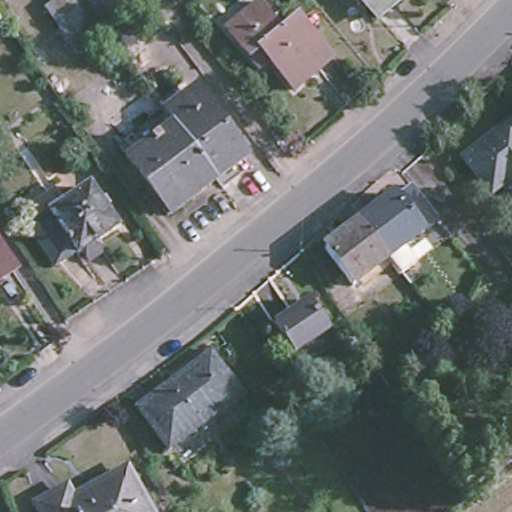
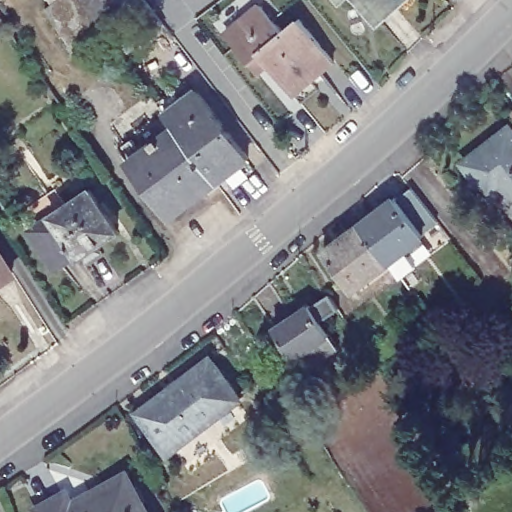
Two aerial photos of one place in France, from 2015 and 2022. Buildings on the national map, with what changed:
unchanged [(75,54),(44,9),(50,5),(47,0),(111,0),(124,18),(75,54)]
unchanged [(411,0),(387,20),(370,0),(411,0)]
unchanged [(238,44),(227,29),(235,24),(261,3),(284,31),(301,18),(331,53),(336,59),(315,78),(296,94),(272,64),(261,74),(256,66),(238,44)]
unchanged [(223,192),(205,205),(165,150),(136,171),(125,156),(170,124),(201,99),(212,114),(253,168),(223,192)]
unchanged [(509,193),(498,201),(472,167),(512,136),(512,191),(509,193)]
unchanged [(205,205),(176,226),(136,171),(165,150),(205,205)]
unchanged [(509,193),(512,191),(512,197),(509,193)]
unchanged [(66,195),(78,213),(99,199),(127,240),(108,254),(112,259),(98,269),(93,264),(90,267),(87,264),(67,278),(29,220),(66,195)]
unchanged [(396,199),(424,234),(402,251),(390,261),(361,225),(396,199)]
unchanged [(390,261),(354,289),(326,253),(361,225),(390,261)]
unchanged [(0,240),(17,273),(0,286),(0,240)]
unchanged [(313,308),(332,338),(295,362),(276,333),(313,308)]
unchanged [(170,452),(140,410),(211,357),(242,398),(170,452)]
unchanged [(512,374),(512,390),(511,393),(482,381),(488,364),(512,374)]
unchanged [(71,499),(77,509),(130,477),(151,512),(50,512),(71,499)]

